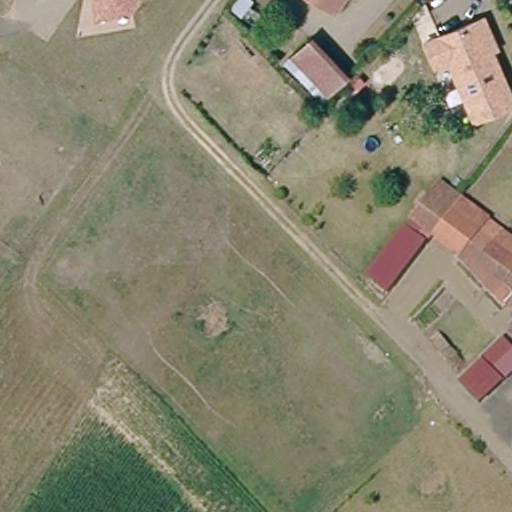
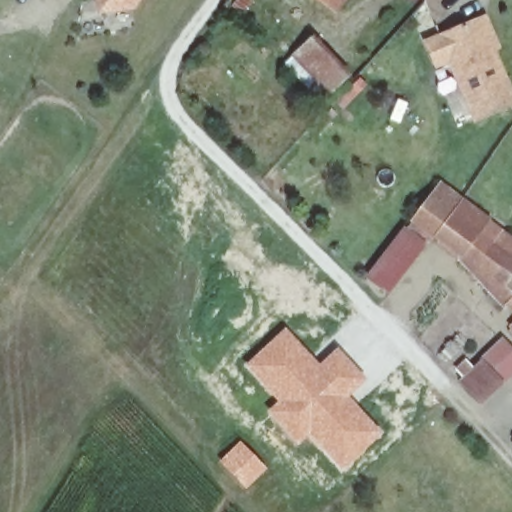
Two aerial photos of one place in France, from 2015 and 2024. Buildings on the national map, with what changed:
unchanged [(99,9),(97,0),(135,0),(132,4),(99,9)]
unchanged [(230,9),(221,3),(224,0),(237,0),(230,9)]
unchanged [(333,14),(313,0),(343,0),(333,14)]
unchanged [(468,117),(443,56),(430,61),(421,40),(435,35),(471,21),(483,16),(495,46),(485,51),(506,102),(468,117)]
unchanged [(317,94),(289,59),(310,42),(338,77),(317,94)]
unchanged [(440,231),(437,229),(420,215),(422,213),(445,184),(464,199),(505,229),(480,262),(440,231)]
unchanged [(410,272),(395,293),(375,278),(410,229),(430,244),(410,272)]
unchanged [(512,235),(512,272),(506,280),(500,287),(480,262),(505,229),(512,235)]
unchanged [(500,287),(506,280),(512,285),(512,301),(500,287)]
new [(285,327),(318,362),(337,346),(367,380),(350,395),(383,434),(341,473),(307,437),(296,447),(265,411),(275,401),(244,365),(285,327)]
unchanged [(512,342),(512,363),(478,395),(457,373),(502,331),(512,342)]
new [(240,440),(267,469),(245,490),(217,461),(240,440)]

